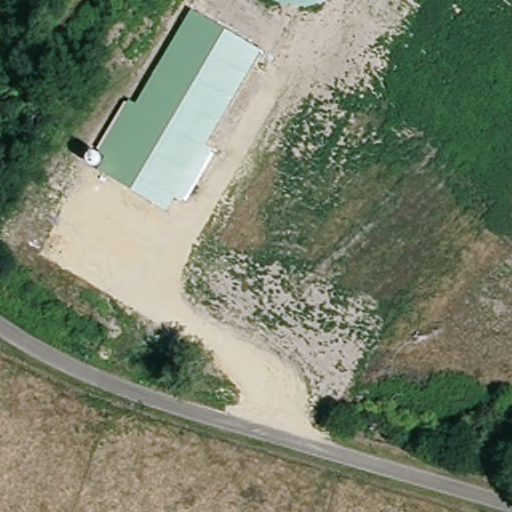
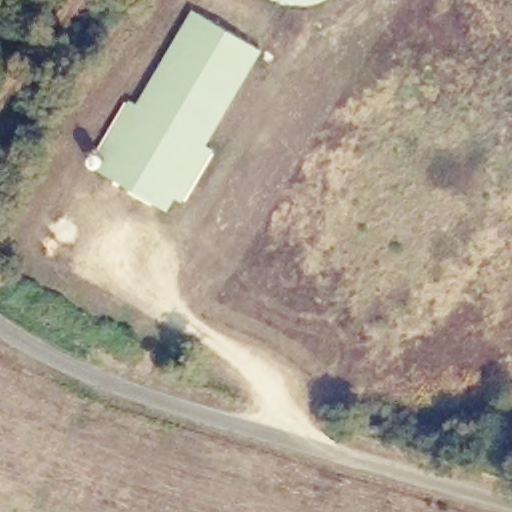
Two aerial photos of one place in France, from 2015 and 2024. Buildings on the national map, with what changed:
unchanged [(322,2),(300,6),(278,2),(275,0),(325,0),(322,2)]
unchanged [(191,9),(262,53),(206,145),(216,151),(185,204),(176,198),(168,212),(97,169),(105,155),(96,150),(127,98),(136,103),(191,9)]

